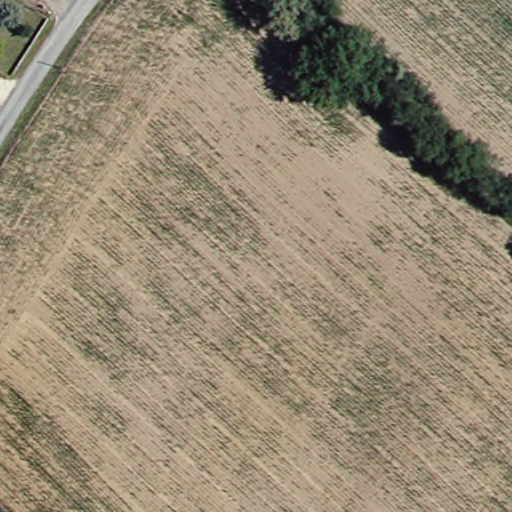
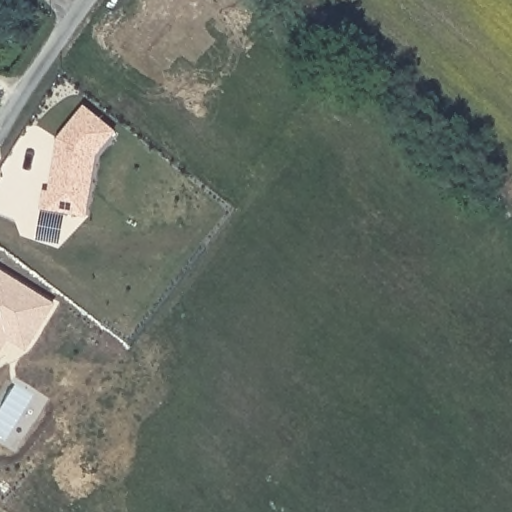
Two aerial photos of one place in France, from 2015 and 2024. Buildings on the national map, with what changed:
new [(96,155),(87,215),(41,211),(43,190),(50,191),(57,137),(85,105),(117,131),(96,155)]
new [(28,350),(10,339),(0,355),(0,269),(57,304),(28,350)]

